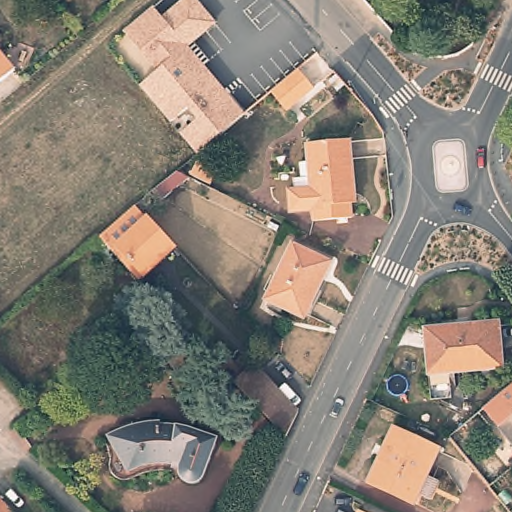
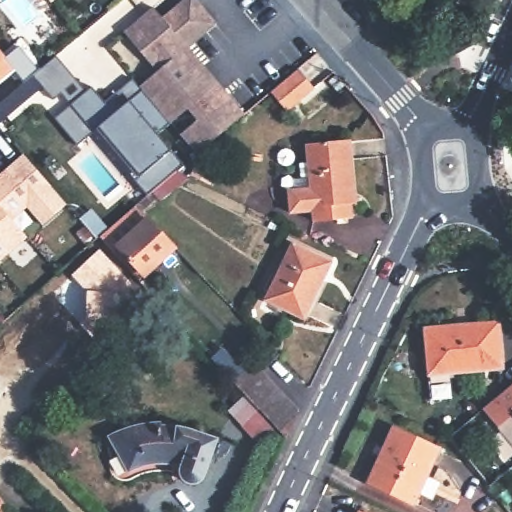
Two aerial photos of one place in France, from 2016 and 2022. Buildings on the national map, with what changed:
unchanged [(124,32),(155,5),(162,16),(183,0),(200,0),(219,23),(190,46),(246,112),(198,154),(181,133),(198,119),(188,108),(171,122),(140,85),(156,70),(124,32)]
unchanged [(15,66),(0,78),(0,47),(15,66)]
new [(76,145),(54,118),(68,104),(61,93),(52,99),(42,85),(0,121),(0,103),(32,75),(55,55),(84,91),(90,86),(103,102),(131,79),(138,88),(140,85),(142,87),(170,120),(154,131),(170,152),(181,164),(151,189),(146,194),(130,174),(134,170),(97,127),(76,145)]
unchanged [(299,67),(315,88),(287,112),(271,92),(299,67)]
unchanged [(352,204),(354,218),(315,222),(314,209),(292,211),(290,188),(295,188),(294,179),(302,178),(301,163),(310,162),(308,143),(352,139),(357,204),(352,204)]
new [(21,155),(66,205),(42,226),(27,209),(11,220),(26,237),(0,259),(0,172),(21,155)]
unchanged [(139,279),(120,257),(101,238),(131,211),(130,209),(135,205),(175,247),(139,279)]
unchanged [(290,243),(328,263),(301,319),(263,300),(290,243)]
unchanged [(136,293),(145,285),(159,300),(149,308),(136,293)]
unchanged [(466,328),(466,325),(496,324),(499,369),(424,374),(422,331),(466,328)]
unchanged [(239,403),(247,395),(224,370),(243,352),(297,409),(298,409),(285,435),(272,421),(255,403),(246,411),(239,403)]
unchanged [(484,404),(512,381),(512,438),(500,424),(484,404)]
unchanged [(126,427),(139,424),(150,422),(160,421),(161,424),(179,425),(188,426),(205,432),(217,437),(203,476),(200,479),(196,481),(192,482),(187,481),(183,479),(181,476),(179,472),(179,468),(179,463),(168,461),(153,462),(144,463),(128,468),(106,434),(126,427)]
unchanged [(384,445),(394,424),(440,445),(415,500),(375,481),(370,478),(384,445)]
unchanged [(14,512),(0,512),(0,496),(14,512)]
unchanged [(363,512),(353,512),(354,508),(363,512)]

